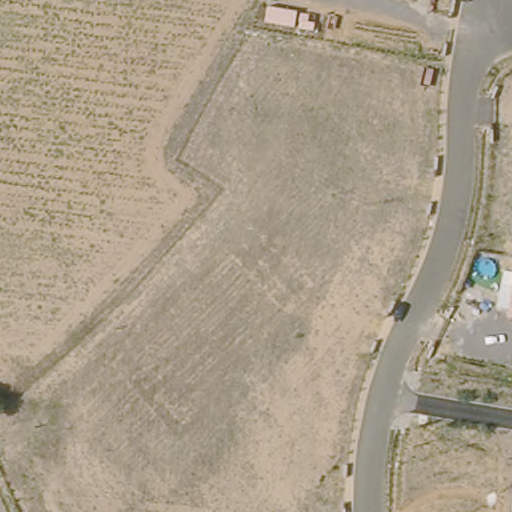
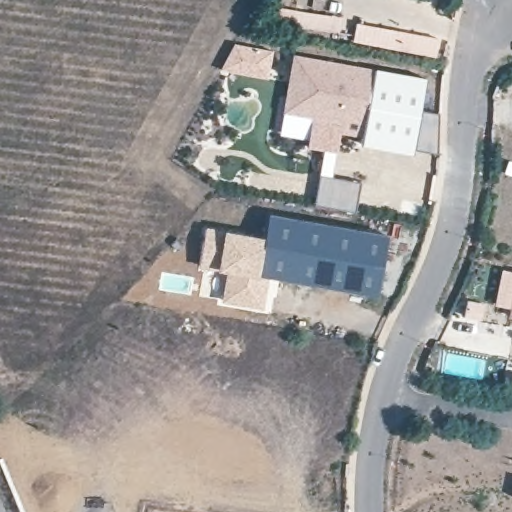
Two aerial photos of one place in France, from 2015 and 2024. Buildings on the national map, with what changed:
new [(341,134),(342,126),(283,114),(294,55),(375,69),(364,136),(341,134)]
new [(362,145),(370,99),(375,69),(425,77),(413,154),(362,145)]
new [(342,126),(341,134),(337,152),(332,176),(360,181),(355,211),(314,203),(320,174),(324,149),(307,146),(309,138),(280,133),(283,114),(342,126)]
new [(378,297),(260,275),(270,213),(390,235),(378,297)]
new [(225,229),(266,237),(260,275),(268,277),(263,307),(221,301),(225,271),(217,270),(218,267),(199,265),(206,226),(225,229)]
unchanged [(512,303),(512,319),(510,318),(512,303)]

